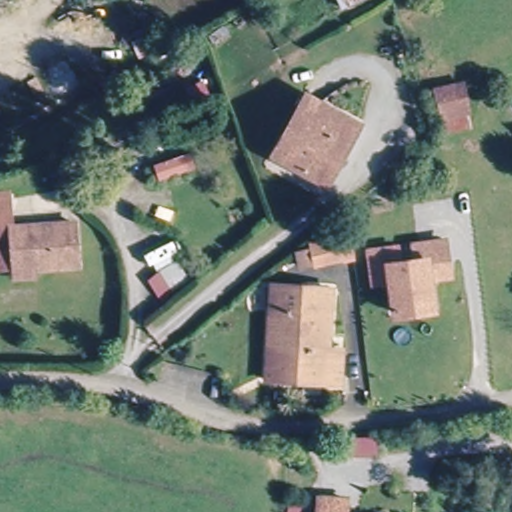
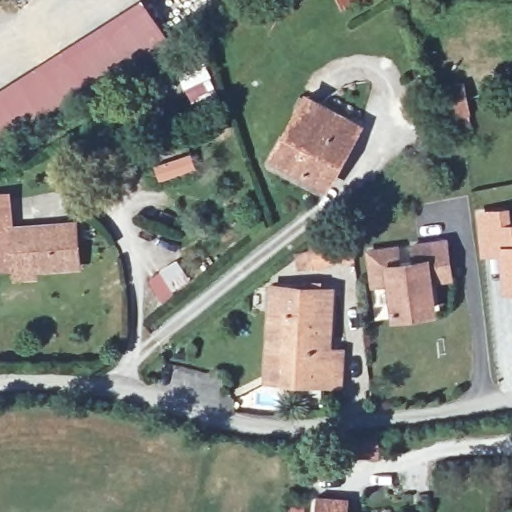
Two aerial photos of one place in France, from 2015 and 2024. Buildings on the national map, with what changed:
new [(140,0),(143,0),(168,38),(128,65),(0,143),(0,89),(140,0)]
new [(204,58),(217,90),(191,102),(176,70),(204,58)]
unchanged [(434,87),(466,83),(473,129),(443,134),(434,87)]
unchanged [(315,105),(362,137),(325,194),(280,163),(315,105)]
unchanged [(73,275),(0,273),(0,193),(11,193),(13,230),(73,232),(73,275)]
new [(512,222),(512,221),(512,291),(506,292),(502,255),(482,258),(477,210),(511,207),(512,222)]
unchanged [(301,268),(299,248),(352,244),(342,264),(301,268)]
unchanged [(416,314),(395,314),(393,274),(376,275),(375,250),(447,248),(449,273),(428,274),(430,303),(430,314),(416,314)]
unchanged [(350,383),(332,382),(273,379),(278,308),(279,282),(289,283),(335,287),(333,342),(351,342),(350,383)]
new [(379,438),(380,455),(350,456),(349,439),(379,438)]
unchanged [(321,494),(351,494),(351,512),(321,512),(321,494)]

